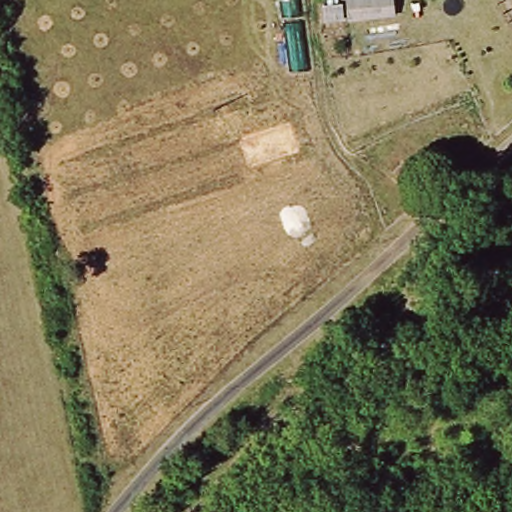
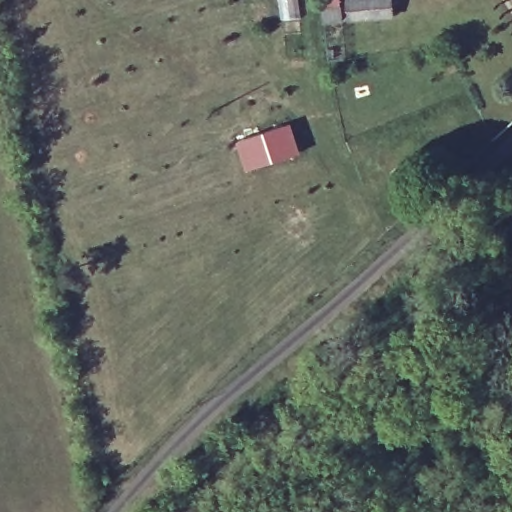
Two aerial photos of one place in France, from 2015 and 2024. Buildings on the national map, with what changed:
unchanged [(391,16),(353,23),(349,0),(388,0),(391,16)]
new [(236,141),(291,122),(302,151),(247,171),(236,141)]

